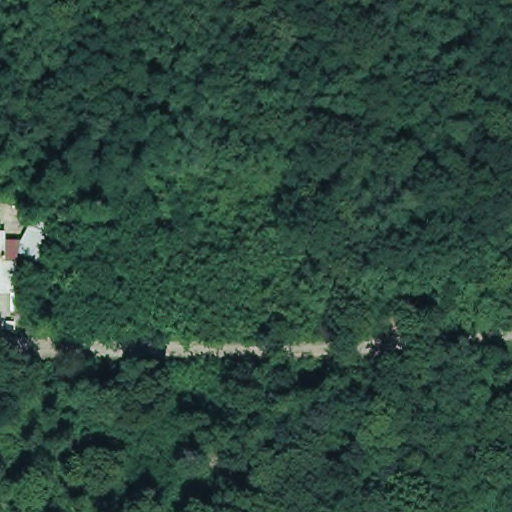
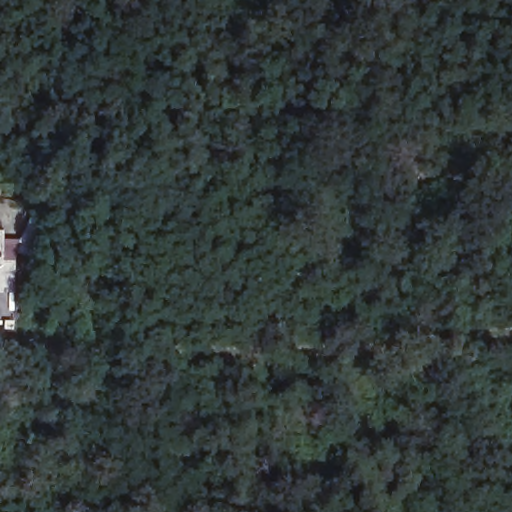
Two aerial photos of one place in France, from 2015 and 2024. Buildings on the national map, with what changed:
unchanged [(16,299),(0,298),(0,233),(17,232),(16,299)]

